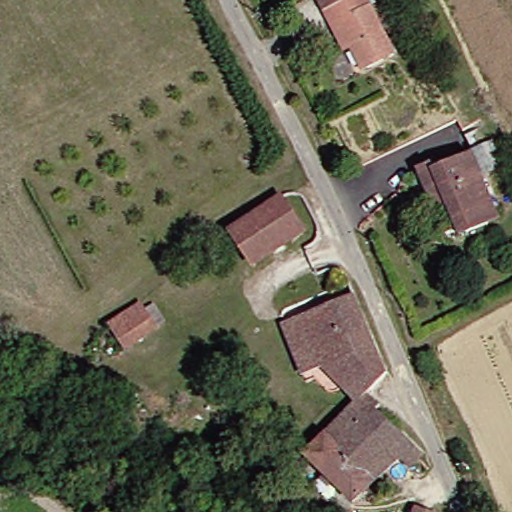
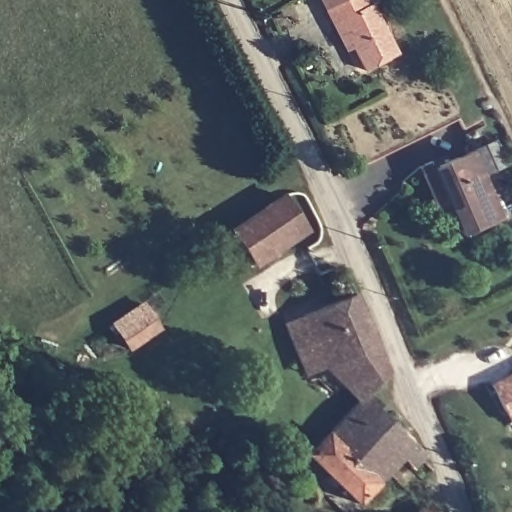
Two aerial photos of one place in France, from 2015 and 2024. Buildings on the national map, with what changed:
unchanged [(337,27),(323,0),(371,0),(402,59),(374,73),(362,50),(351,55),(337,27)]
unchanged [(468,236),(454,205),(442,210),(425,175),(437,170),(475,153),(505,219),(468,236)]
unchanged [(235,238),(285,203),(308,235),(259,270),(235,238)]
unchanged [(358,297),(378,343),(332,370),(307,320),(358,297)]
unchanged [(134,350),(117,327),(149,305),(165,327),(134,350)]
unchanged [(301,322),(307,320),(332,370),(314,378),(290,327),(301,322)]
unchanged [(378,343),(392,373),(375,391),(355,410),(332,370),(378,343)]
new [(512,425),(510,425),(490,384),(512,373),(512,425)]
unchanged [(391,407),(385,413),(427,450),(423,453),(434,465),(410,488),(390,467),(356,499),(311,451),(355,410),(375,391),(391,407)]
unchanged [(429,512),(419,512),(420,508),(429,512)]

